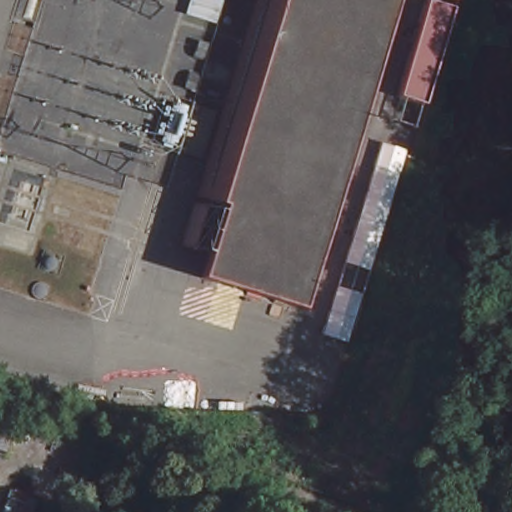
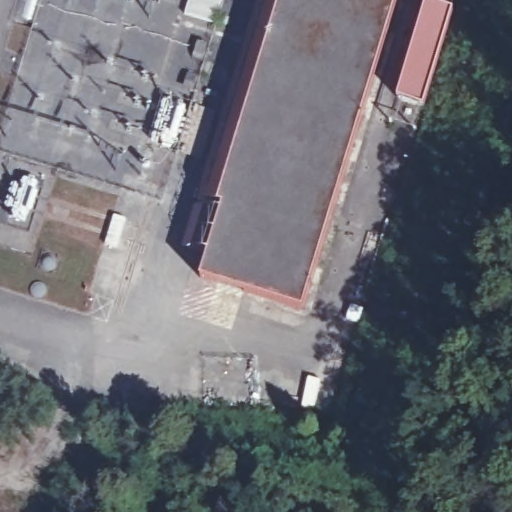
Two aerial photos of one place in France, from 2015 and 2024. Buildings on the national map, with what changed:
unchanged [(199,293),(208,266),(179,258),(258,0),(400,0),(301,324),(199,293)]
unchanged [(449,14),(423,6),(425,0),(453,0),(449,14)]
unchanged [(485,3),(477,0),(486,0),(485,3)]
unchanged [(420,109),(394,101),(423,6),(449,14),(420,109)]
unchanged [(215,124),(201,171),(178,164),(192,118),(215,124)]

